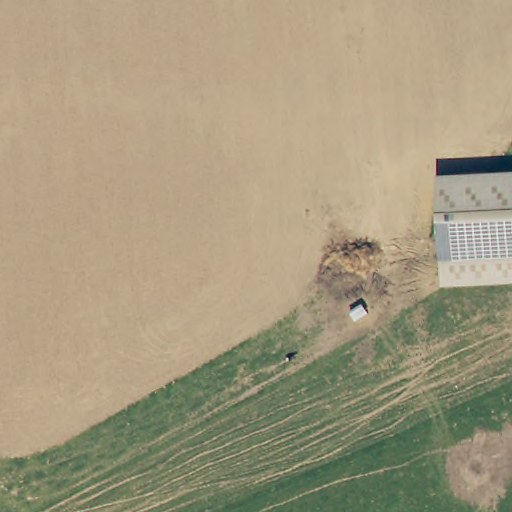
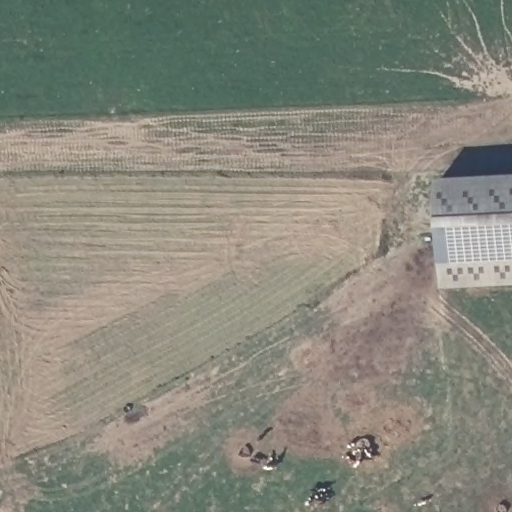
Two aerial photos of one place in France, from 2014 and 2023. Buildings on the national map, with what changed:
unchanged [(438,178),(512,174),(512,285),(442,288),(438,178)]

